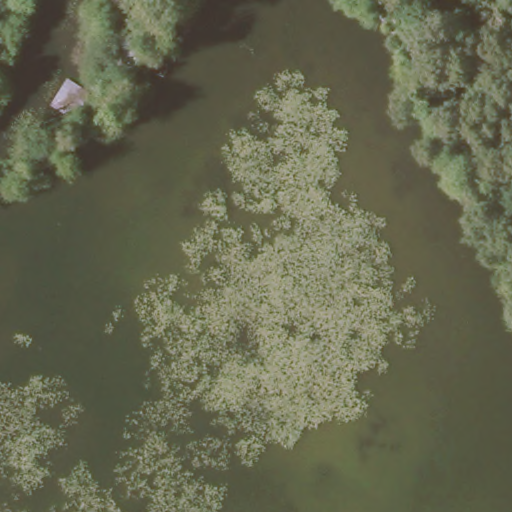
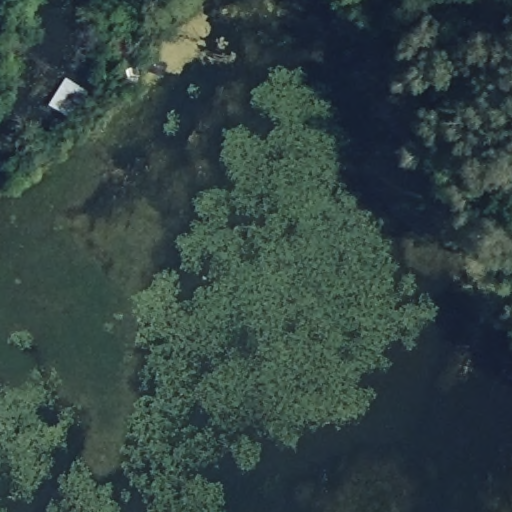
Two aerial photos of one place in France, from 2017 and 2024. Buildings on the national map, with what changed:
unchanged [(68,142),(54,151),(47,141),(62,132),(68,142)]

